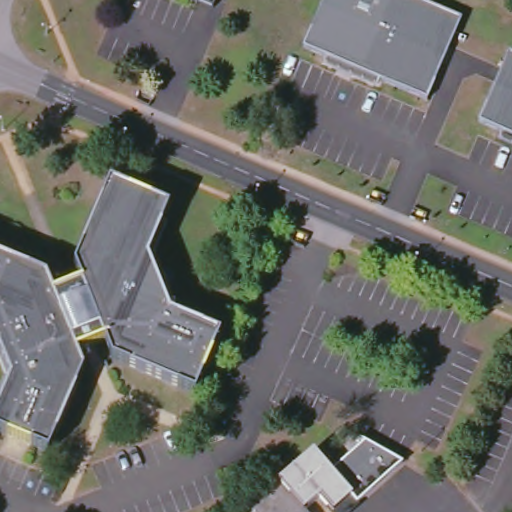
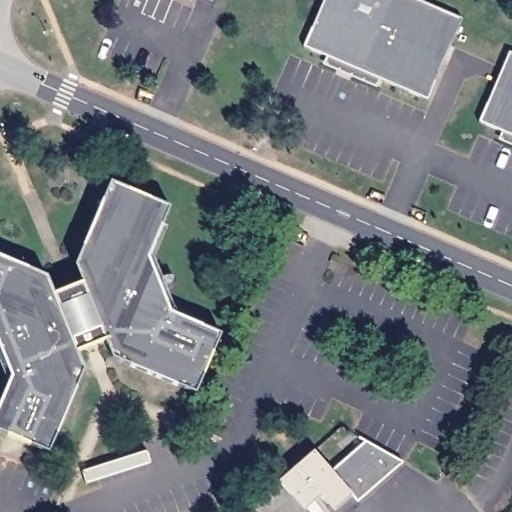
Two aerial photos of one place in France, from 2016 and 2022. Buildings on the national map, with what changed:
unchanged [(211,0),(210,3),(204,0),(211,0)]
unchanged [(329,58),(304,47),(324,0),(419,0),(463,19),(452,46),(445,60),(428,101),(379,79),(376,85),(327,64),(329,58)]
unchanged [(502,140),(505,133),(479,122),(510,51),(512,53),(512,144),(502,140)]
unchanged [(261,127),(266,116),(285,124),(280,135),(261,127)]
unchanged [(0,363),(0,258),(42,276),(49,294),(57,291),(69,286),(77,283),(70,266),(105,182),(165,207),(145,258),(167,313),(217,334),(191,394),(107,359),(100,341),(93,344),(80,350),(74,352),(80,370),(44,453),(2,435),(0,434),(0,390),(5,377),(0,363)]
unchanged [(315,452),(332,472),(366,442),(404,463),(358,503),(360,505),(352,512),(334,512),(321,497),(304,512),(245,512),(315,452)]

